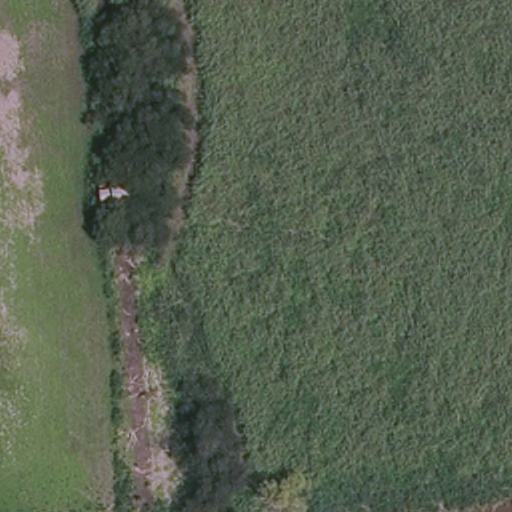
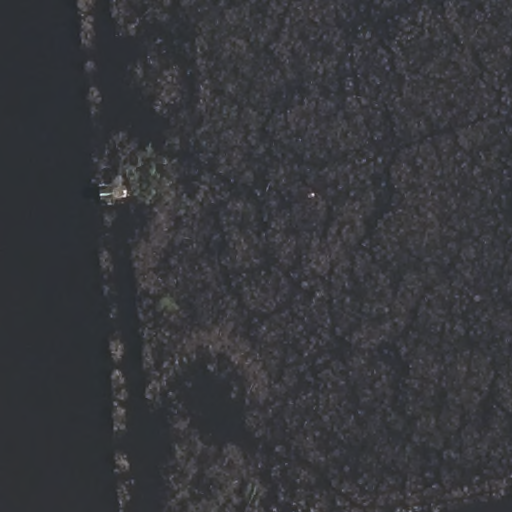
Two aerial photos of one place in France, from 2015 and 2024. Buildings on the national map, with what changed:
unchanged [(102,203),(101,186),(115,185),(116,200),(102,203)]

